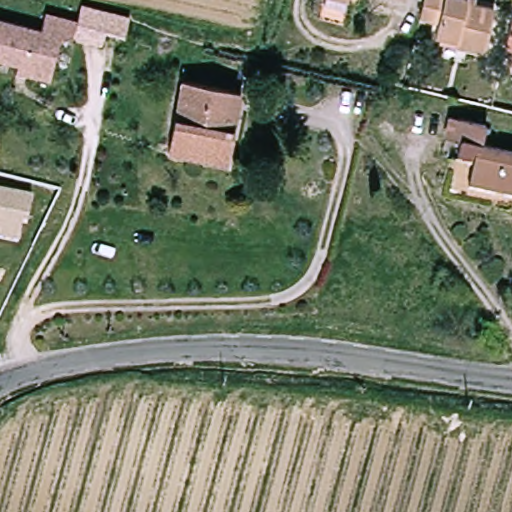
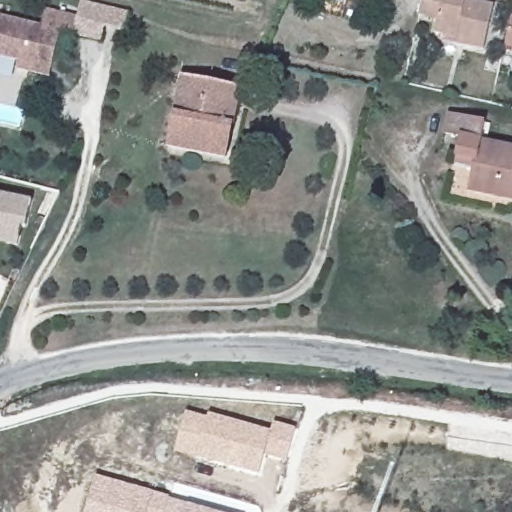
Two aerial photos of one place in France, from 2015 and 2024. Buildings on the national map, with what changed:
unchanged [(20,60),(0,56),(0,16),(43,25),(47,9),(78,15),(81,0),(86,0),(110,5),(103,37),(75,31),(75,32),(62,30),(54,67),(52,75),(19,67),(20,60)]
unchanged [(361,0),(361,1),(357,0),(361,0)]
unchanged [(442,34),(445,22),(425,18),(429,0),(481,0),(482,0),(481,7),(500,11),(492,50),(470,46),(448,41),(450,35),(442,34)]
unchanged [(511,44),(512,42),(512,40),(512,44),(511,44)]
unchanged [(243,87),(230,157),(172,146),(185,76),(243,87)]
unchanged [(462,156),(465,140),(452,136),(454,119),(488,127),(485,145),(512,152),(512,201),(472,191),(477,170),(460,167),(462,156)]
unchanged [(29,229),(24,228),(20,248),(0,244),(1,240),(0,239),(0,198),(33,205),(29,229)]
new [(265,455),(259,475),(175,452),(187,411),(207,416),(209,413),(272,431),(275,421),(297,428),(287,461),(265,455)]
new [(95,475),(153,490),(170,495),(170,498),(220,512),(85,512),(95,475)]

